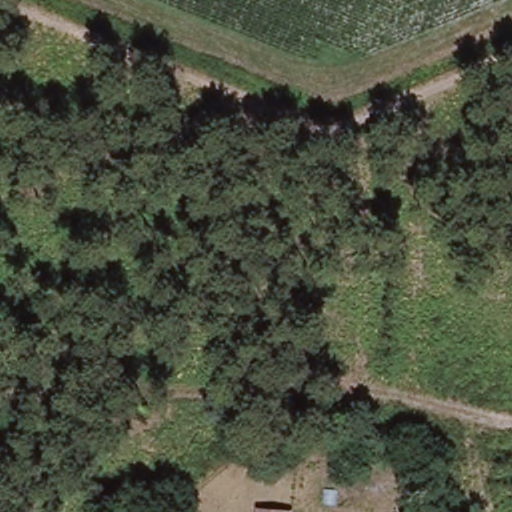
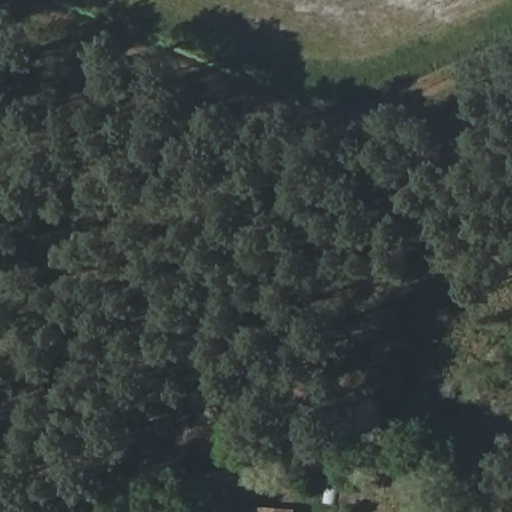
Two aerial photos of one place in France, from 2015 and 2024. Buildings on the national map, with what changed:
unchanged [(300,507),(300,512),(266,512),(266,506),(300,507)]

